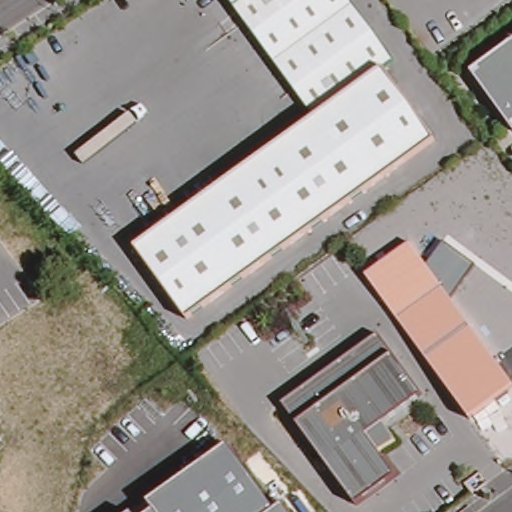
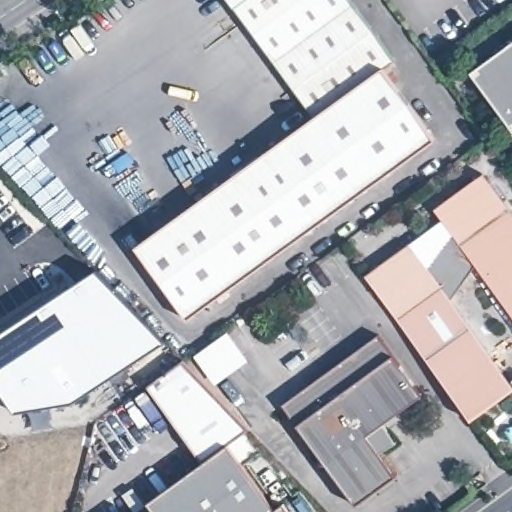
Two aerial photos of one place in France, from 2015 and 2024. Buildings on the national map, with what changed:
unchanged [(396,63),(385,71),(435,141),(188,318),(135,246),(314,117),(228,0),(350,0),(396,63)]
unchanged [(512,43),(512,128),(511,129),(472,72),(512,43)]
new [(512,211),(512,314),(476,264),(444,242),(450,230),(434,208),(485,172),(508,205),(512,211)]
unchanged [(367,277),(411,243),(427,266),(444,242),(476,264),(452,300),(512,384),(512,390),(471,421),(398,320),(367,277)]
new [(32,429),(29,409),(13,412),(0,391),(0,332),(97,268),(152,327),(162,342),(74,400),(49,406),(50,427),(32,429)]
new [(228,330),(249,360),(215,385),(193,355),(228,330)]
unchanged [(298,423),(282,404),(377,336),(391,356),(419,396),(382,422),(396,443),(379,454),(396,479),(354,505),(298,423)]
new [(183,361),(250,430),(229,446),(203,464),(148,386),(183,361)]
unchanged [(229,446),(276,511),(284,505),(289,512),(155,512),(148,503),(229,446)]

